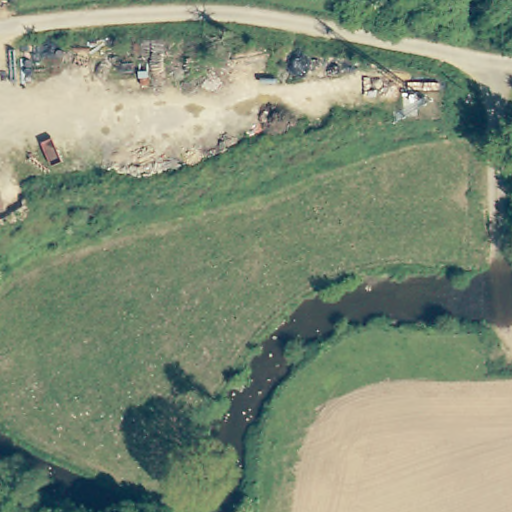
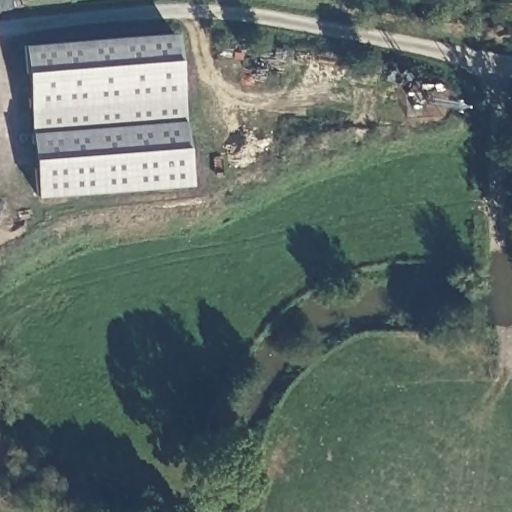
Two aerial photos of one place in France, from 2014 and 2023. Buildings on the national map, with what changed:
new [(33,197),(20,44),(175,31),(187,184),(33,197)]

